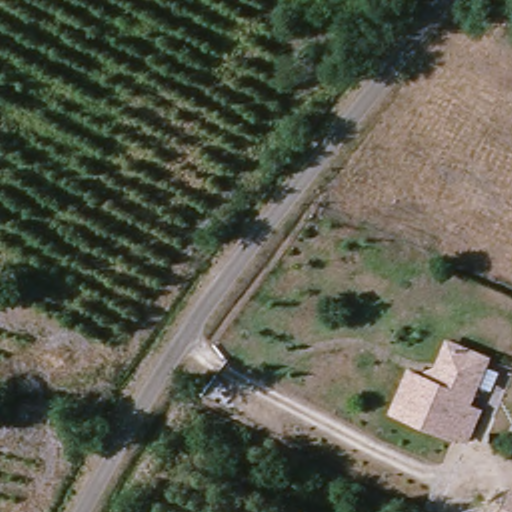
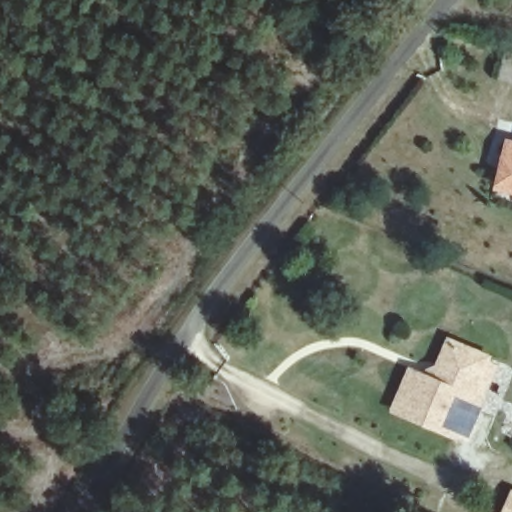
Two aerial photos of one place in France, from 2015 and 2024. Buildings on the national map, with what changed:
new [(512,138),(512,194),(494,189),(507,136),(512,138)]
unchanged [(465,413),(476,418),(464,445),(453,440),(451,443),(391,416),(409,377),(434,388),(438,377),(444,358),(448,348),(457,352),(486,365),(465,413)]
unchanged [(509,512),(512,505),(512,512),(509,512)]

